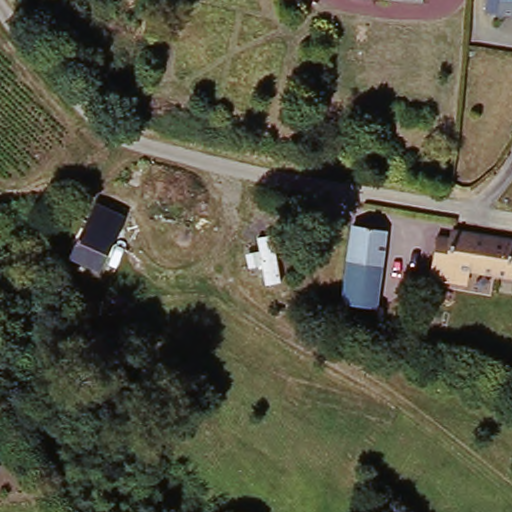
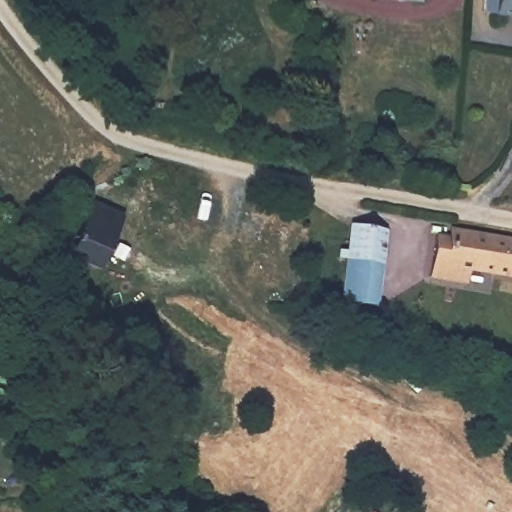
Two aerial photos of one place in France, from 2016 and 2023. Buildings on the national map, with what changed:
unchanged [(500,0),(512,0),(512,16),(500,14),(500,0)]
unchanged [(125,227),(109,268),(80,254),(94,217),(125,227)]
unchanged [(391,230),(382,309),(347,303),(352,224),(391,230)]
unchanged [(471,270),(467,282),(440,277),(443,243),(453,243),(457,230),(512,240),(512,277),(471,270)]

